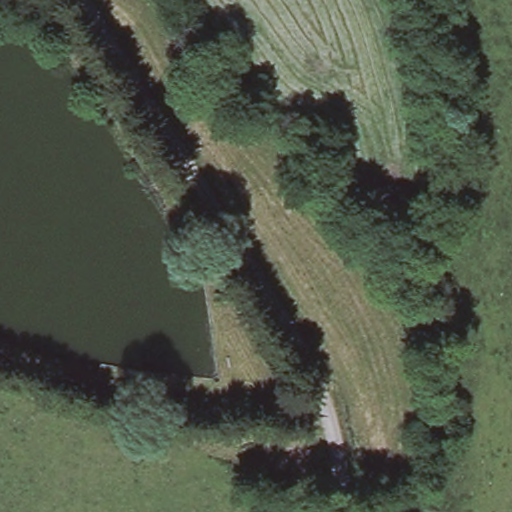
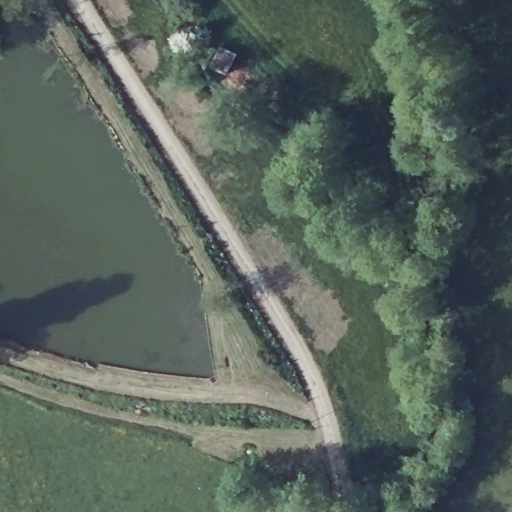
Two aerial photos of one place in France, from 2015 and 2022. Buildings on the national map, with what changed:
unchanged [(229,75),(212,67),(222,46),(240,54),(229,75)]

